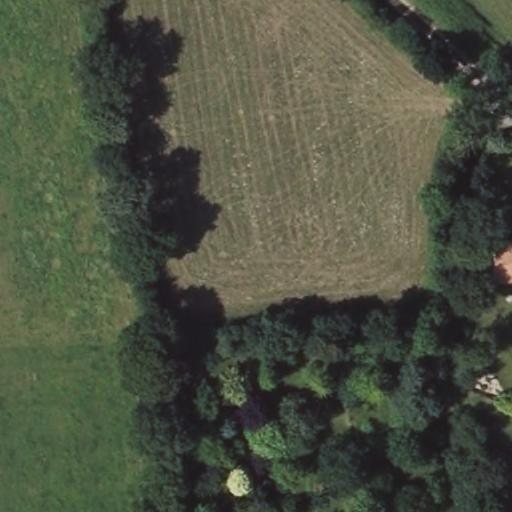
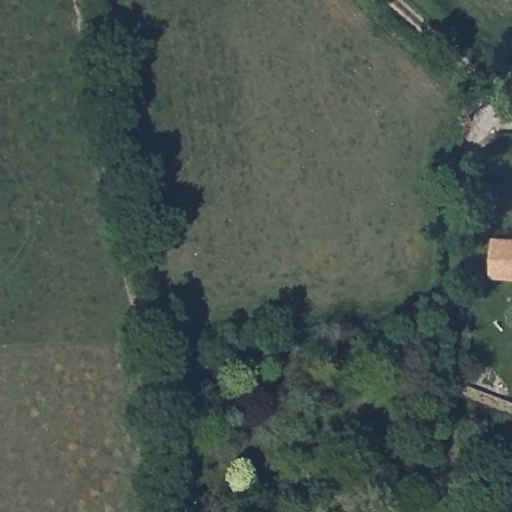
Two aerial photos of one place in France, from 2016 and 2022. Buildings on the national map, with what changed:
unchanged [(493,281),(492,241),(512,240),(512,280),(493,281)]

